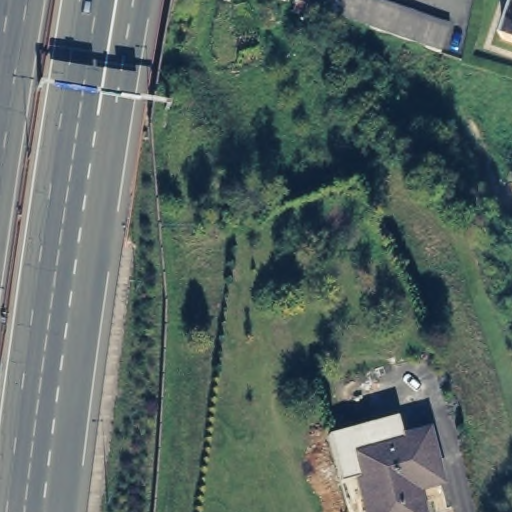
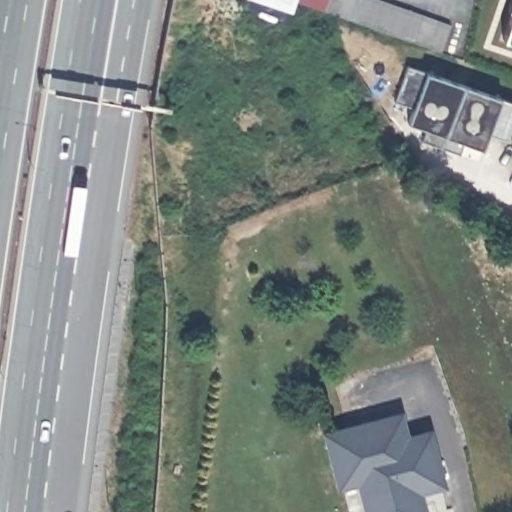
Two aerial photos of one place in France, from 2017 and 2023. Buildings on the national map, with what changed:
unchanged [(298,2),(298,0),(384,0),(450,25),(442,52),(325,12),(298,2)]
unchanged [(511,0),(512,0),(512,44),(498,39),(511,0)]
new [(458,152),(423,140),(427,130),(408,124),(414,107),(395,100),(407,65),(427,72),(500,97),(512,102),(512,121),(505,139),(487,132),(482,149),(462,142),(458,152)]
unchanged [(505,213),(512,217),(512,233),(499,225),(505,213)]
unchanged [(415,496),(418,512),(368,512),(352,447),(423,427),(439,488),(415,496)]

